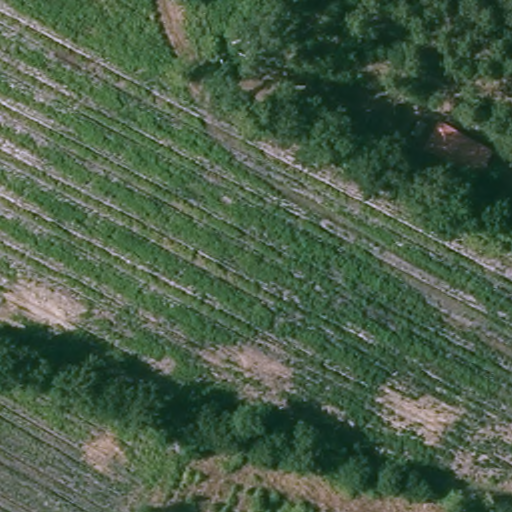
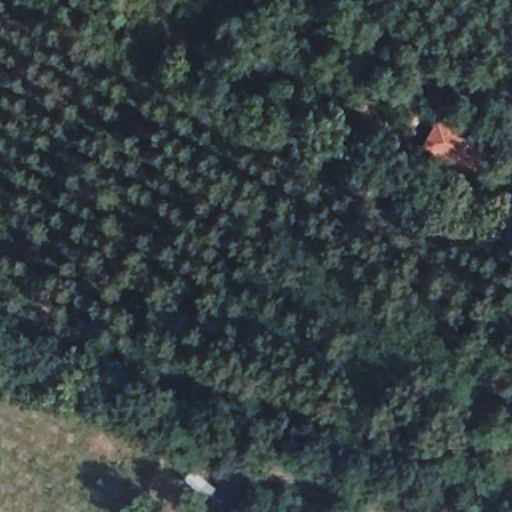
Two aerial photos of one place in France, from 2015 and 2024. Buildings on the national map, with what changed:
unchanged [(476,181),(427,155),(421,151),(432,129),(440,133),(488,159),(476,181)]

